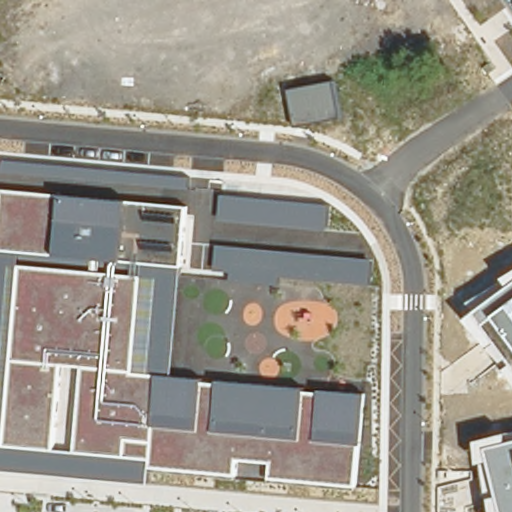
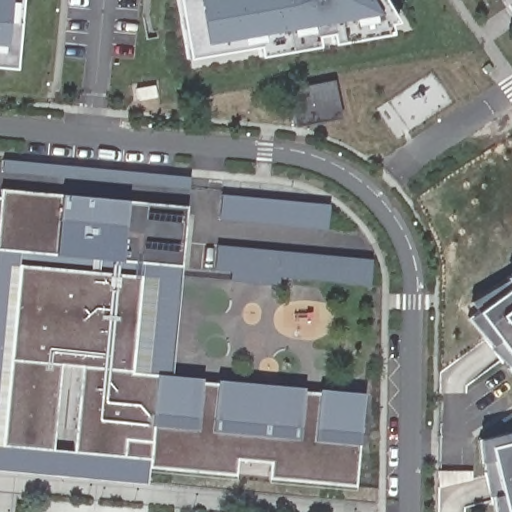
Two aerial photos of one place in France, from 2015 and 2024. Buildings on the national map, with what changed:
new [(15,69),(0,67),(0,0),(21,0),(15,69)]
new [(330,34),(316,36),(317,47),(260,56),(257,45),(188,58),(177,0),(384,0),(397,24),(388,24),(390,34),(333,45),(330,34)]
unchanged [(294,127),(288,90),(333,81),(341,117),(294,127)]
new [(3,159),(191,176),(190,189),(2,171),(3,159)]
unchanged [(365,394),(357,489),(267,480),(269,464),(238,461),(237,476),(149,467),(147,486),(0,471),(0,197),(2,190),(187,207),(172,376),(365,394)]
unchanged [(329,230),(218,220),(222,195),(331,205),(329,230)]
unchanged [(370,286),(280,278),(279,286),(229,280),(229,272),(214,270),(217,245),(374,259),(370,286)]
unchanged [(464,312),(512,279),(512,377),(464,312)]
unchanged [(476,442),(512,434),(512,512),(493,512),(476,442)]

